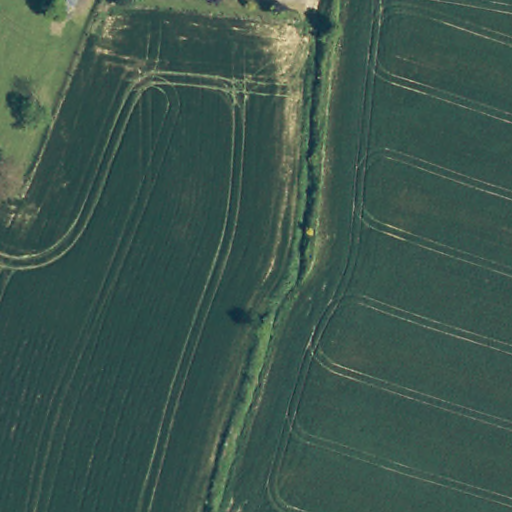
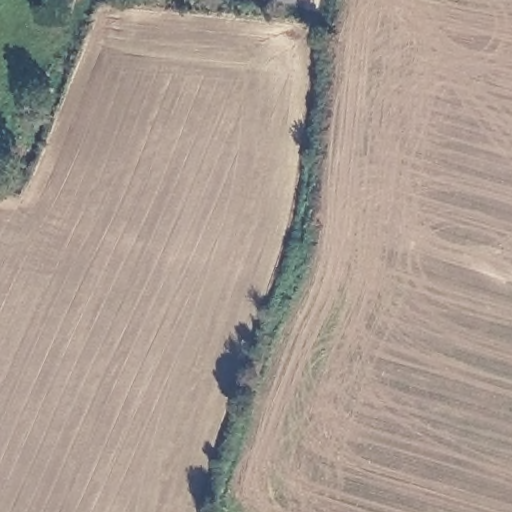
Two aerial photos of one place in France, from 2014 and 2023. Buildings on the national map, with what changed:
unchanged [(57,0),(64,0),(63,3),(57,0)]

